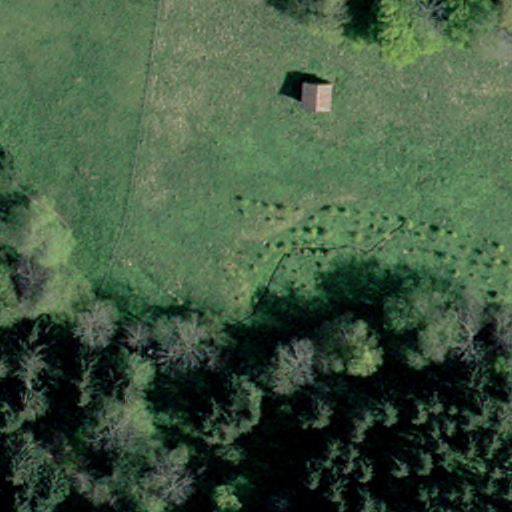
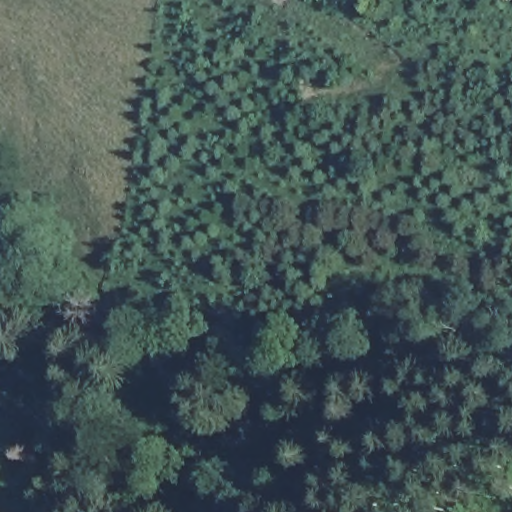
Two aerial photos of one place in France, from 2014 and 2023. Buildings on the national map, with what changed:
[]

